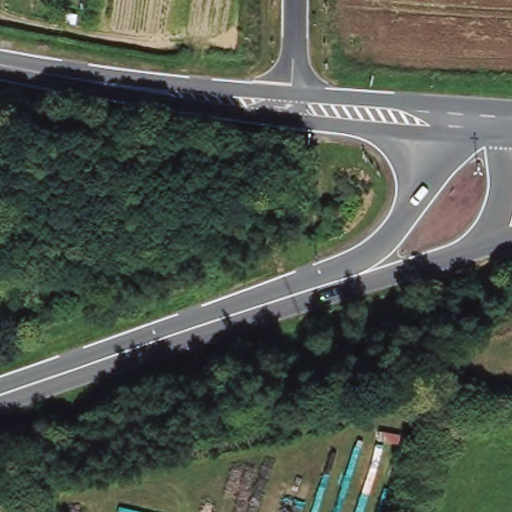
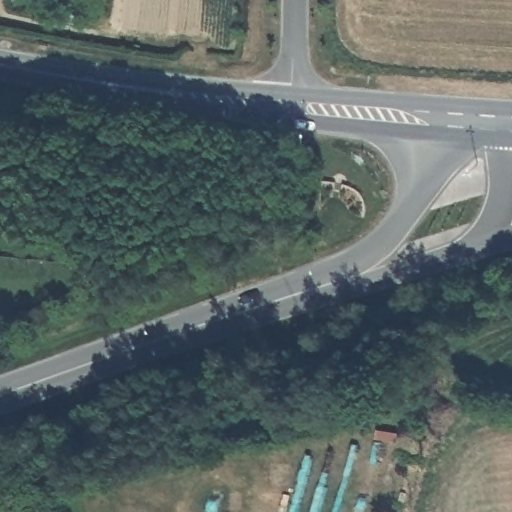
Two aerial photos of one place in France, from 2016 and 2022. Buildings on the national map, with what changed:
[]

